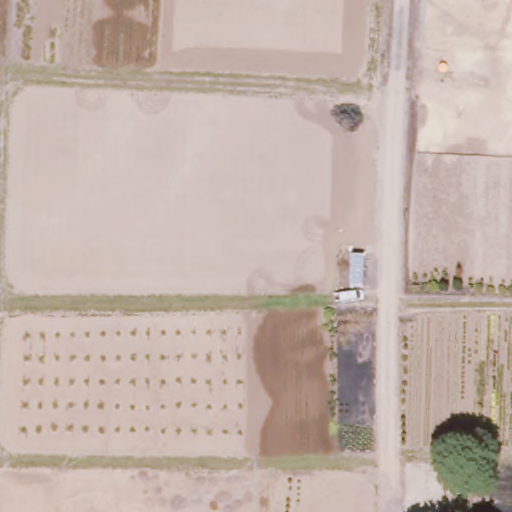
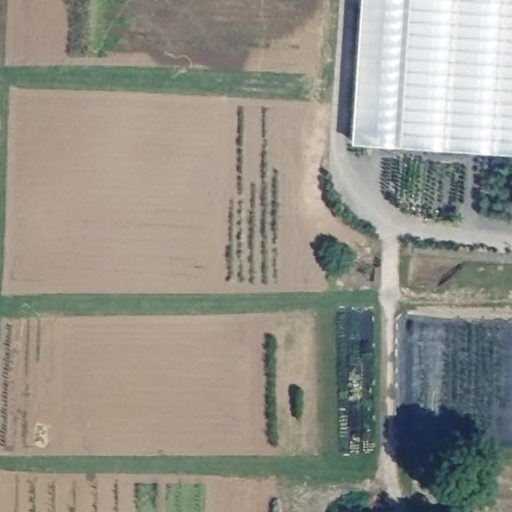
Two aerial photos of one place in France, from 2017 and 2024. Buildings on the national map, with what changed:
new [(351,147),(361,0),(512,0),(512,158),(351,147)]

